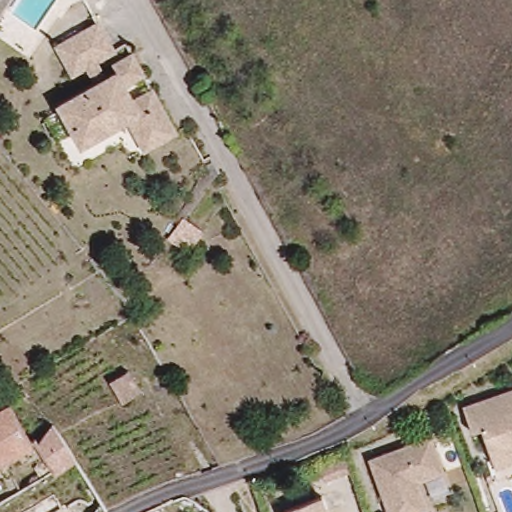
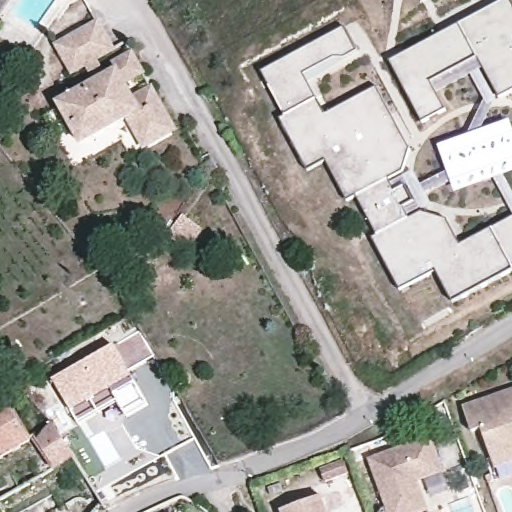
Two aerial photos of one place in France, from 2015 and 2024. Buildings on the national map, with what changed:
new [(478,57),(432,82),(447,109),(424,122),(391,60),(423,42),(425,45),(505,0),(512,0),(512,1),(512,92),(500,99),(478,57)]
unchanged [(52,45),(65,37),(92,21),(109,47),(82,64),(69,72),(52,45)]
new [(357,51),(345,57),(333,57),(303,74),(325,115),(376,89),(410,147),(403,170),(388,179),(408,220),(422,213),(447,220),(460,246),(492,229),(512,217),(512,267),(511,267),(512,269),(512,270),(453,301),(436,271),(400,291),(373,239),(378,236),(356,197),(348,202),(326,160),(307,170),(282,118),(286,116),(262,72),(343,27),(357,51)]
unchanged [(128,50),(140,70),(122,81),(131,96),(150,85),(175,126),(145,144),(126,115),(81,141),(57,102),(113,69),(108,62),(128,50)]
new [(512,122),(512,173),(455,194),(439,147),(511,121),(512,122)]
unchanged [(210,219),(183,240),(171,234),(170,226),(196,205),(210,219)]
new [(115,346),(149,403),(126,416),(118,403),(80,425),(54,381),(115,346)]
demolished [(132,370),(144,391),(125,403),(112,381),(132,370)]
unchanged [(482,432),(472,435),(462,405),(512,388),(512,460),(495,467),(491,456),(482,432)]
unchanged [(31,442),(0,464),(0,412),(6,408),(31,442)]
unchanged [(60,467),(45,450),(38,441),(56,427),(63,436),(78,457),(60,467)]
unchanged [(443,472),(418,480),(427,509),(419,512),(386,512),(367,456),(430,435),(440,463),(443,472)]
unchanged [(321,500),(325,512),(283,512),(321,500)]

